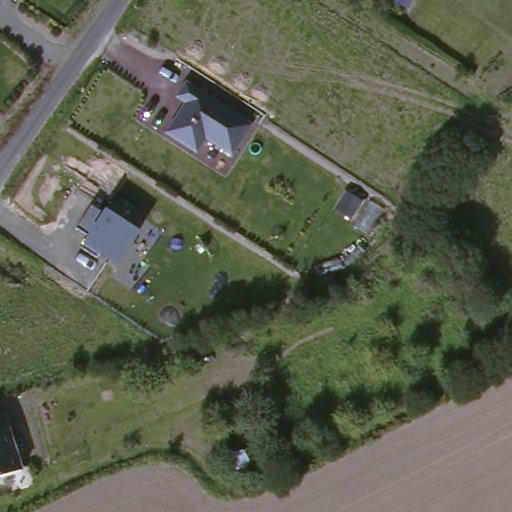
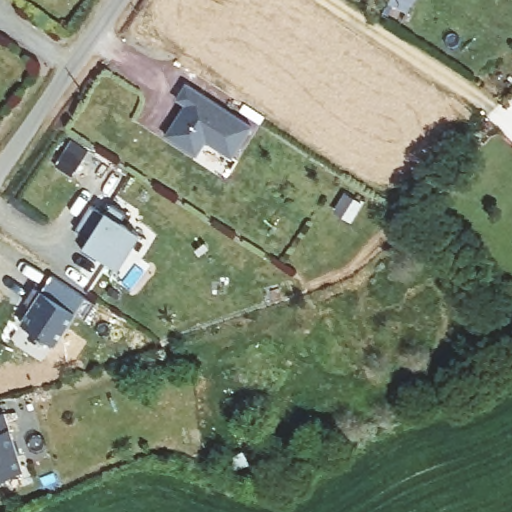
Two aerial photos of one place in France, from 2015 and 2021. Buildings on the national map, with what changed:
unchanged [(408,3),(402,0),(410,0),(408,3)]
unchanged [(249,125),(230,156),(203,139),(194,152),(165,131),(184,101),(174,96),(184,82),(249,125)]
unchanged [(77,228),(92,204),(105,213),(106,209),(140,230),(117,266),(84,245),(90,235),(77,228)]
new [(25,300),(34,287),(76,313),(56,344),(18,322),(31,303),(25,300)]
unchanged [(22,471),(0,477),(0,415),(2,414),(22,471)]

